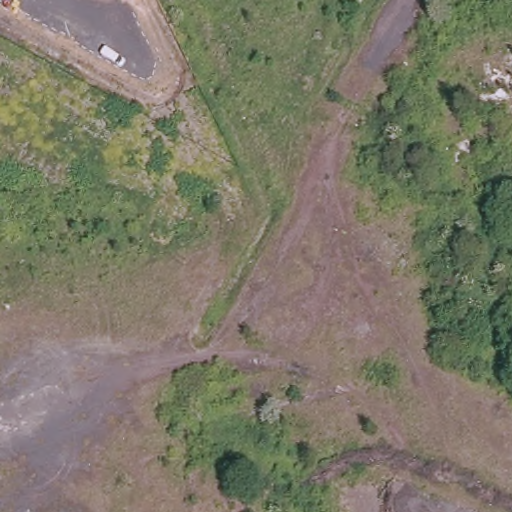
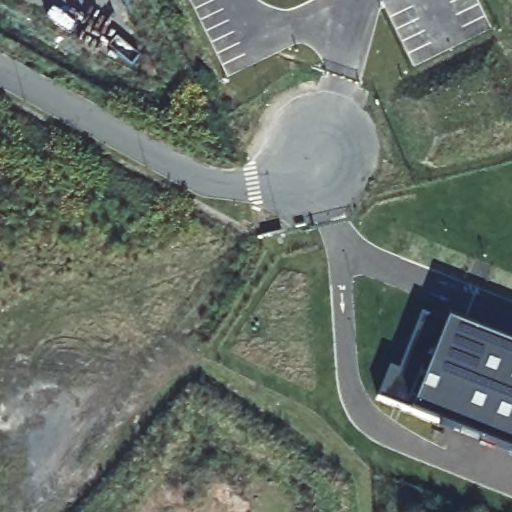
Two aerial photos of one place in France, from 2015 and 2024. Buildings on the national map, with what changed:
new [(396,366),(399,367),(423,307),(512,343),(512,451),(385,399),(396,366)]

